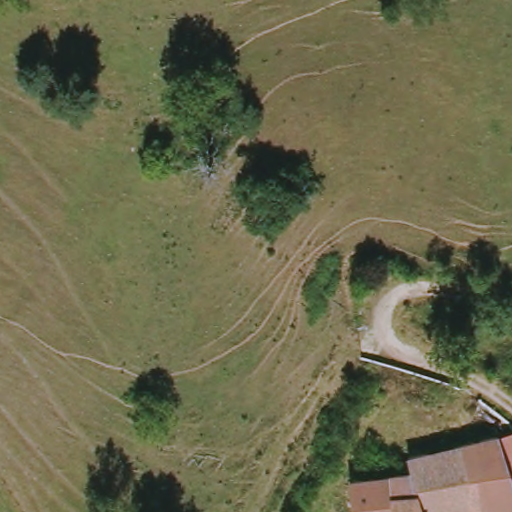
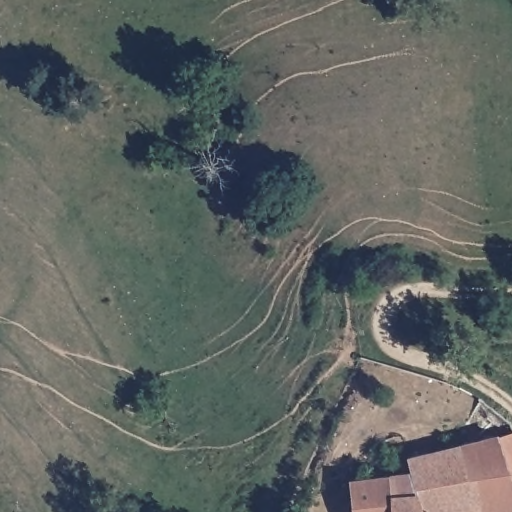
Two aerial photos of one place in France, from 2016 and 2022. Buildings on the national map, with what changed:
unchanged [(411,461),(512,434),(512,510),(481,512),(359,512),(355,481),(415,477),(411,461)]

